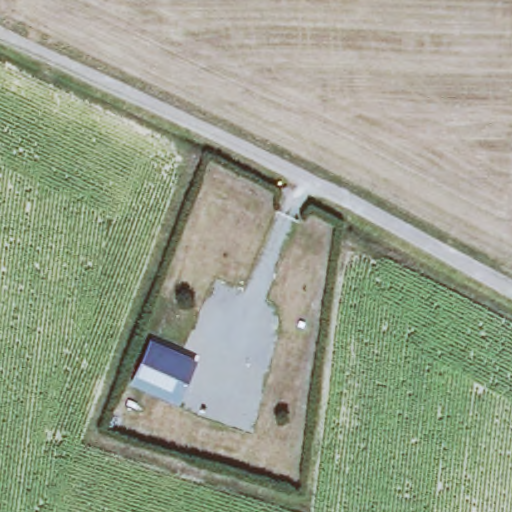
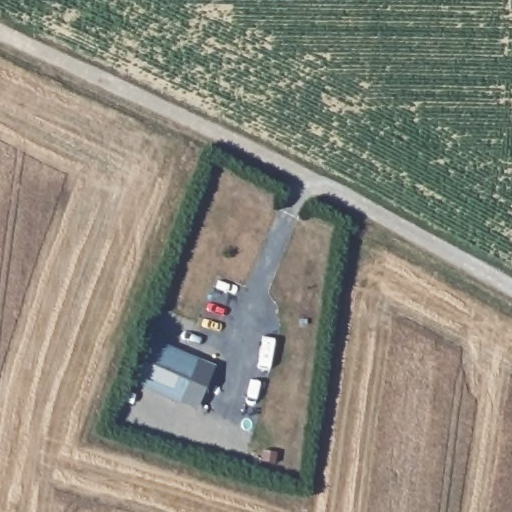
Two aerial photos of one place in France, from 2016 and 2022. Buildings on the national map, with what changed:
unchanged [(200,360),(180,406),(131,383),(153,337),(200,360)]

